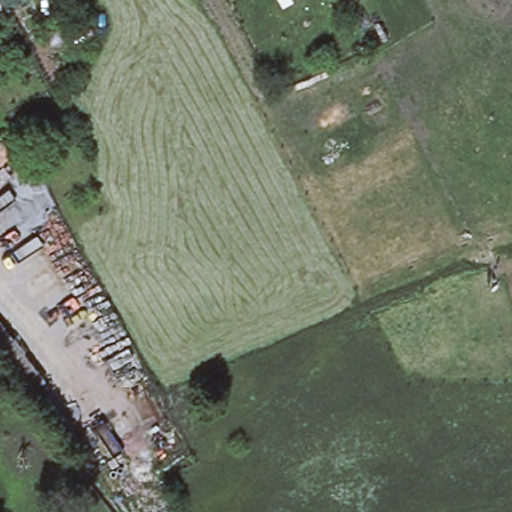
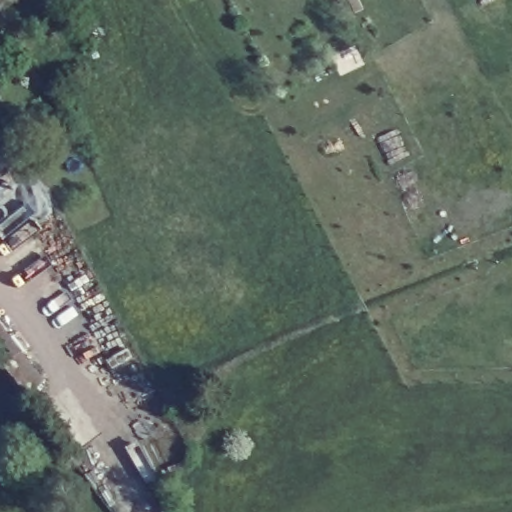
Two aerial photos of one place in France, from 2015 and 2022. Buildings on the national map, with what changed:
unchanged [(48,372),(21,395),(0,367),(0,315),(48,372)]

